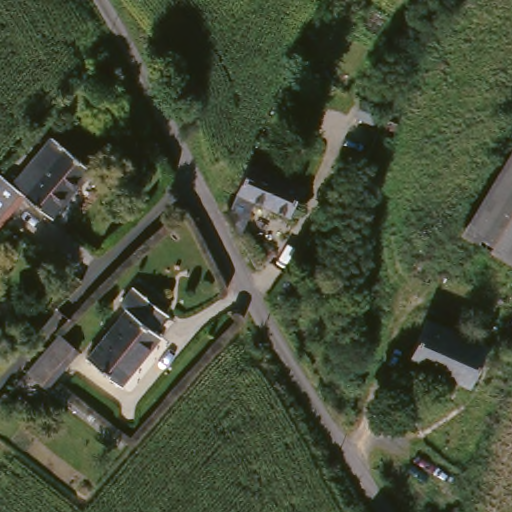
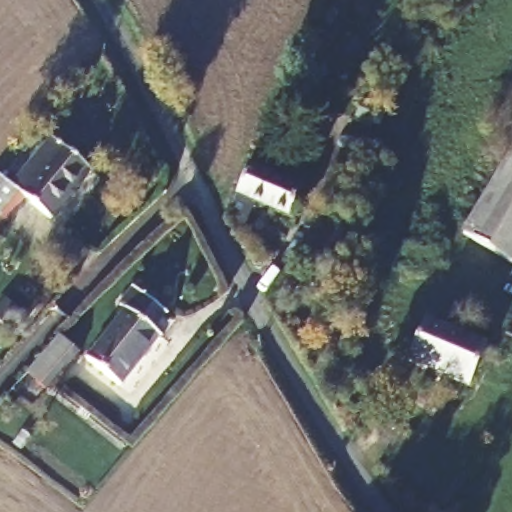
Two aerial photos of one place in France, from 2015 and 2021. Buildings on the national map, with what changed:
unchanged [(389,124),(383,142),(368,137),(374,119),(389,124)]
unchanged [(57,218),(32,198),(6,228),(0,223),(0,199),(14,183),(19,185),(61,139),(99,171),(57,218)]
unchanged [(264,199),(250,233),(236,204),(252,160),(287,174),(310,182),(300,211),(264,199)]
unchanged [(468,230),(512,161),(512,258),(468,230)]
unchanged [(95,354),(135,309),(127,304),(144,286),(176,314),(160,329),(170,337),(127,382),(95,354)]
unchanged [(490,340),(471,383),(411,357),(430,315),(490,340)]
unchanged [(88,355),(58,387),(38,370),(68,339),(88,355)]

